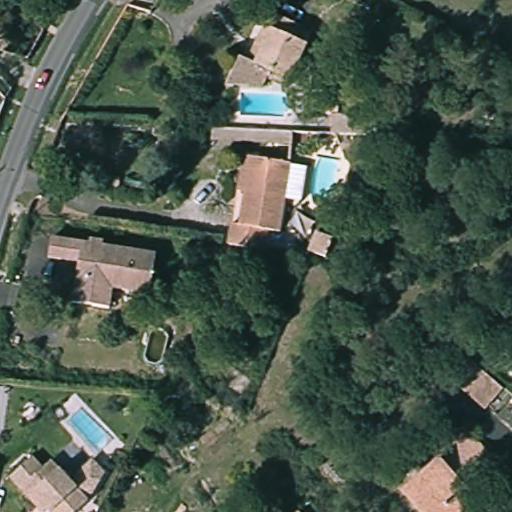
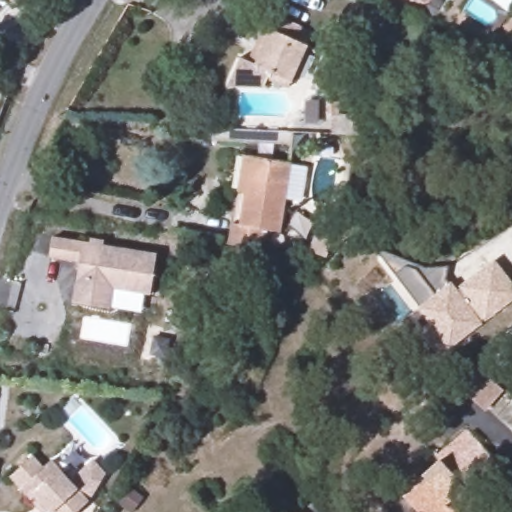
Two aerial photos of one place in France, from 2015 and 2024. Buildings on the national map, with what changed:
unchanged [(290,38),(300,43),(283,77),(263,70),(255,85),(219,84),(231,56),(238,60),(261,7),(297,22),(290,38)]
unchanged [(286,232),(277,231),(275,251),(275,256),(266,255),(230,250),(230,248),(233,225),(230,224),(233,191),(230,191),(234,158),(249,160),(295,166),(286,232)]
unchanged [(156,250),(152,291),(115,287),(112,307),(75,304),(79,263),(49,260),(50,240),(156,250)]
new [(423,267),(448,266),(445,280),(448,283),(451,281),(456,287),(493,259),(512,285),(512,301),(447,349),(416,308),(418,306),(394,274),(375,248),(417,264),(423,267)]
unchanged [(489,366),(511,385),(492,407),(458,379),(477,356),(489,366)]
unchanged [(453,432),(480,460),(479,460),(450,489),(465,506),(470,511),(469,511),(468,512),(414,512),(409,507),(394,490),(453,432)]
unchanged [(40,478),(48,472),(56,481),(80,462),(101,488),(93,498),(84,512),(35,512),(28,504),(25,507),(6,484),(22,472),(30,466),(40,478)]

